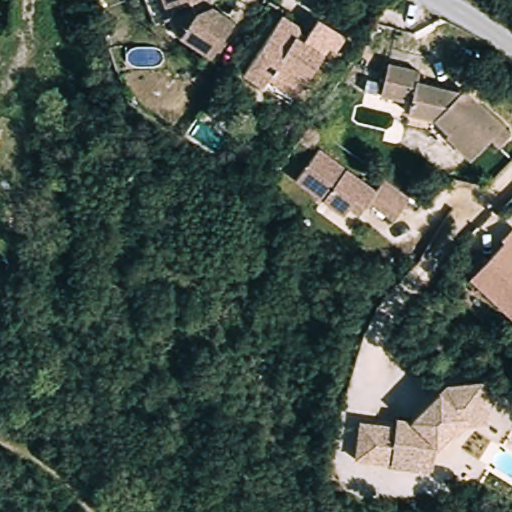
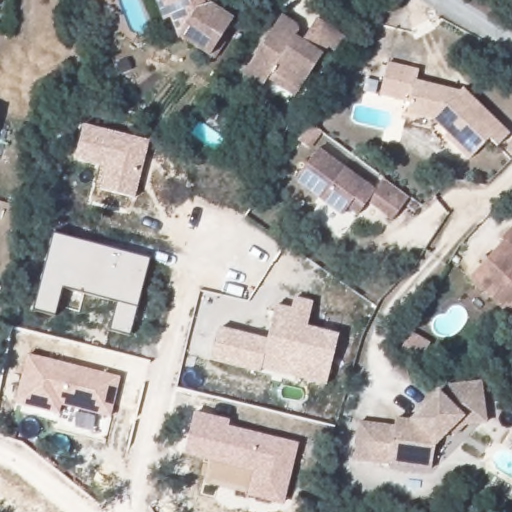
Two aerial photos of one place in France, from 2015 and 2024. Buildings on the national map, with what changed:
unchanged [(224,13),(197,49),(172,32),(168,20),(157,24),(150,0),(208,0),(224,13)]
unchanged [(257,82),(237,68),(274,9),(297,23),(295,27),(303,32),(315,16),(328,24),(340,32),(332,46),(327,43),(312,65),(298,85),(292,95),(263,75),(257,82)]
unchanged [(500,148),(490,140),(475,157),(445,131),(448,126),(432,112),(406,106),(408,97),(375,91),(380,59),(415,67),(412,81),(452,91),(456,86),(512,134),(500,148)]
new [(150,141),(135,197),(99,191),(105,169),(74,161),(82,126),(150,141)]
unchanged [(348,208),(343,216),(295,183),(317,152),(375,191),(383,179),(402,191),(410,197),(391,221),(365,204),(363,207),(358,215),(348,208)]
unchanged [(502,242),(499,240),(510,227),(512,228),(512,320),(467,278),(502,242)]
new [(150,261),(137,307),(130,337),(110,332),(117,303),(63,287),(57,316),(35,311),(35,310),(53,236),(150,261)]
new [(267,339),(275,306),(290,309),(294,298),(312,302),(307,327),(337,334),(327,385),(262,371),(261,374),(210,363),(218,328),(267,339)]
new [(120,380),(110,417),(61,404),(58,413),(16,401),(27,357),(120,380)]
unchanged [(392,460),(372,458),(355,457),(358,420),(375,421),(393,422),(393,414),(410,416),(447,383),(482,387),(478,417),(478,425),(464,424),(453,433),(448,427),(433,441),(431,463),(392,460)]
new [(230,421),(228,427),(297,444),(283,506),(246,497),(252,473),(183,455),(194,413),(230,421)]

